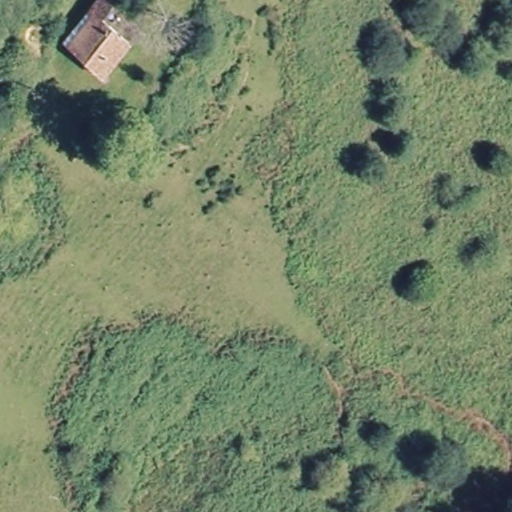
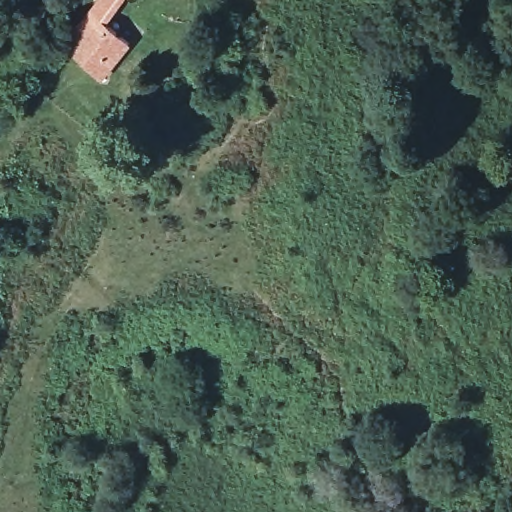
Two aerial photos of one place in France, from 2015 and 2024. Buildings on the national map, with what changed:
unchanged [(92,0),(120,0),(103,20),(129,42),(101,80),(59,44),(92,0)]

